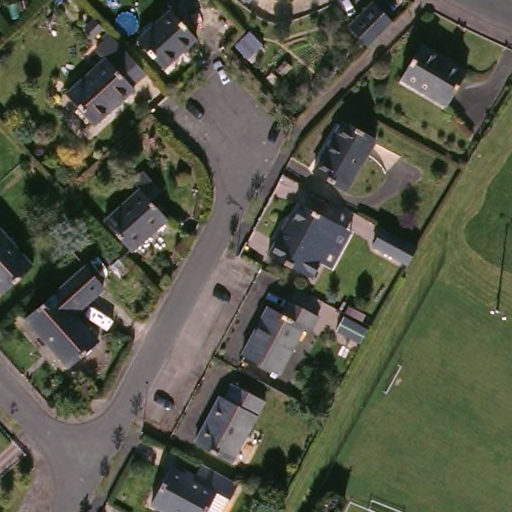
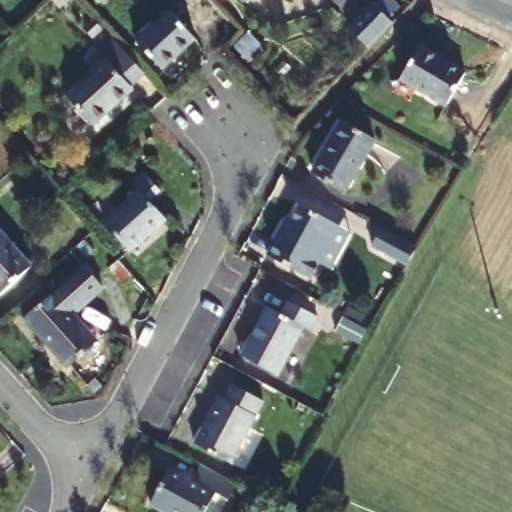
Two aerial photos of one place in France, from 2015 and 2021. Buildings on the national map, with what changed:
unchanged [(347,29),(367,1),(387,14),(368,41),(347,29)]
unchanged [(177,13),(201,38),(171,67),(147,42),(177,13)]
unchanged [(125,45),(149,73),(107,109),(84,81),(125,45)]
unchanged [(427,46),(471,67),(450,102),(408,79),(427,46)]
unchanged [(350,120),(380,138),(349,194),(318,176),(350,120)]
unchanged [(149,187),(176,217),(142,248),(115,218),(149,187)]
unchanged [(322,266),(311,260),(303,275),(260,251),(275,224),(280,226),(293,202),(332,223),(343,229),(322,266)]
unchanged [(422,241),(412,259),(412,258),(378,240),(387,222),(422,241)]
unchanged [(0,286),(0,234),(5,229),(39,265),(7,294),(0,286)]
unchanged [(29,317),(88,266),(105,285),(76,311),(101,339),(71,365),(29,317)]
unchanged [(266,301),(282,310),(289,298),(320,315),(313,329),(305,324),(280,371),(240,350),(266,301)]
unchanged [(373,320),(366,334),(342,321),(350,307),(373,320)]
unchanged [(227,397),(224,395),(233,379),(270,399),(235,462),(201,443),(227,397)]
unchanged [(175,470),(198,482),(206,466),(244,486),(235,502),(230,512),(167,512),(156,506),(175,470)]

